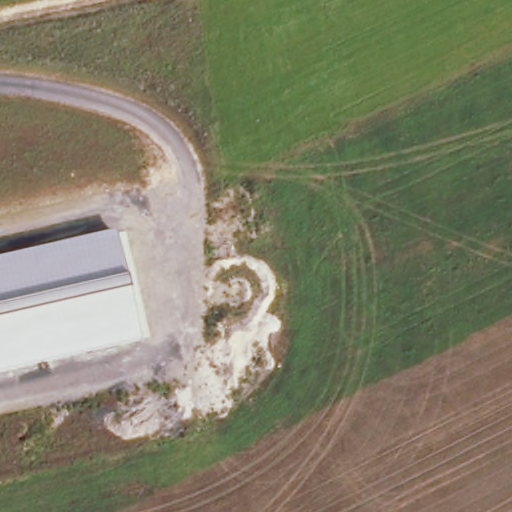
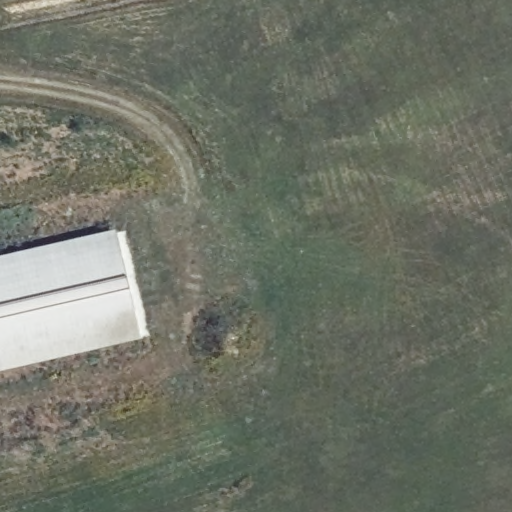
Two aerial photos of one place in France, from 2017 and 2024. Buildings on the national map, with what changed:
unchanged [(116,233),(140,340),(0,372),(0,259),(116,233)]

